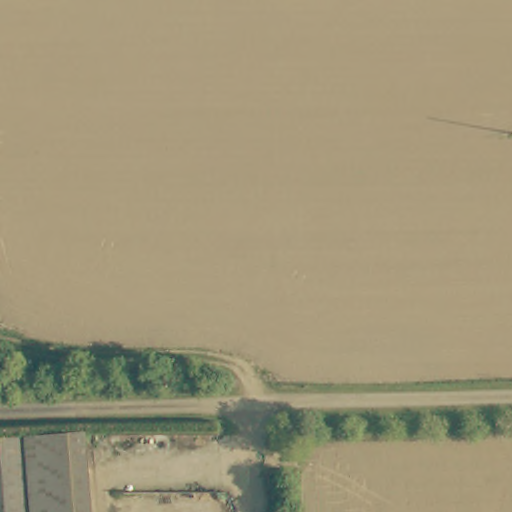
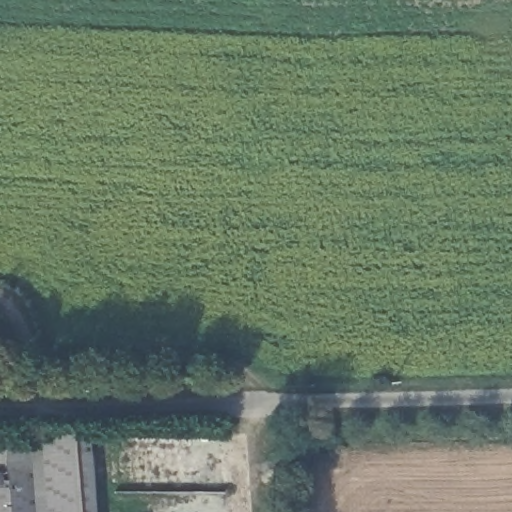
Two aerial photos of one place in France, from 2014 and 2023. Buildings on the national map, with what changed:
unchanged [(91,436),(94,512),(0,512),(0,439),(51,437),(91,436)]

